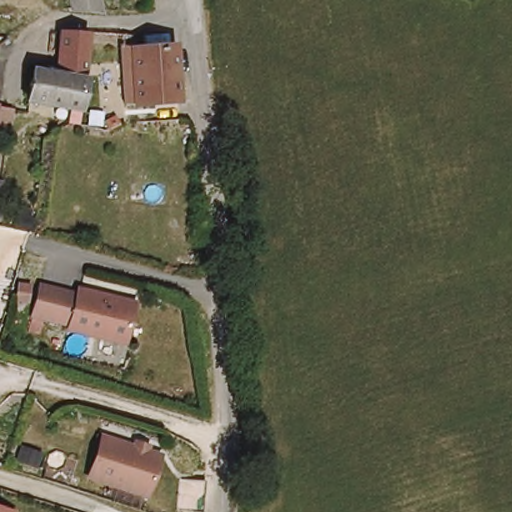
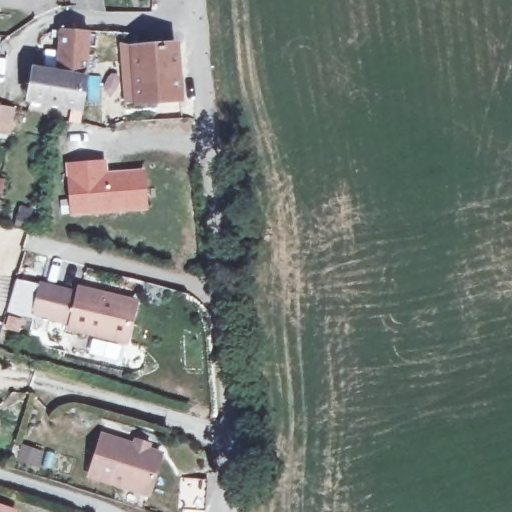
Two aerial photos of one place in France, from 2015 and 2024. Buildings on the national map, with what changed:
unchanged [(67,0),(92,0),(92,3),(69,7),(67,0)]
unchanged [(120,101),(115,40),(177,38),(184,100),(120,101)]
unchanged [(26,103),(33,73),(58,74),(63,44),(85,47),(80,76),(74,106),(26,103)]
unchanged [(99,105),(121,108),(117,139),(95,135),(99,105)]
unchanged [(15,111),(12,134),(0,133),(0,107),(15,111)]
new [(105,158),(107,170),(145,168),(148,210),(68,216),(64,161),(105,158)]
unchanged [(128,298),(117,340),(61,325),(62,319),(24,309),(33,279),(70,290),(72,283),(128,298)]
unchanged [(91,477),(105,437),(165,457),(151,497),(91,477)]
unchanged [(0,512),(0,510),(5,512),(0,512)]

